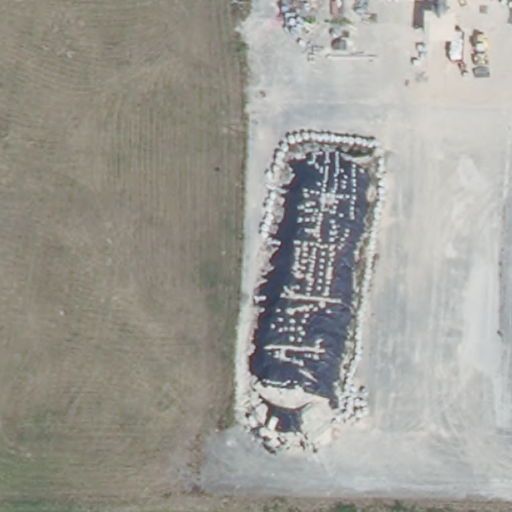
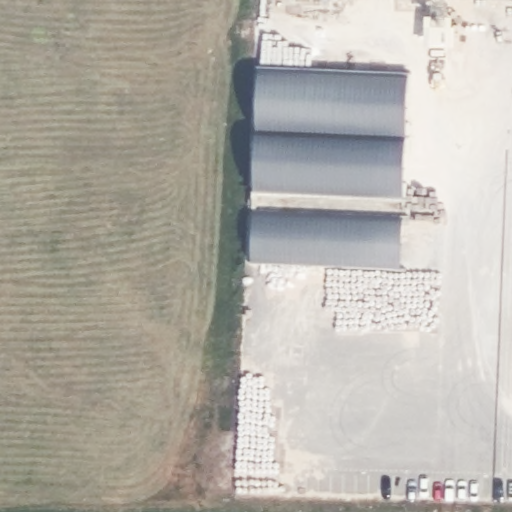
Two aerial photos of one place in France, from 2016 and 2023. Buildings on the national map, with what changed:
new [(408,78),(401,268),(251,263),(258,78),(408,78)]

